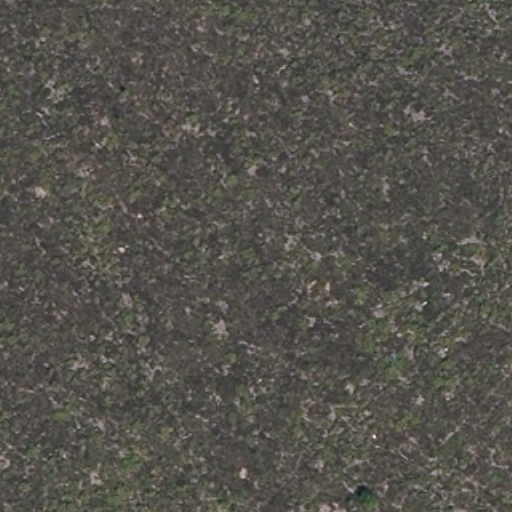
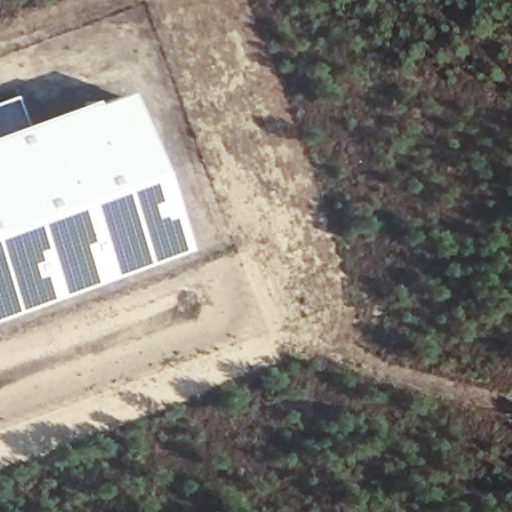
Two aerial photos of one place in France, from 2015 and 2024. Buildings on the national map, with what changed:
new [(25,125),(89,101),(90,106),(124,93),(182,252),(0,319),(0,102),(16,96),(25,125)]

